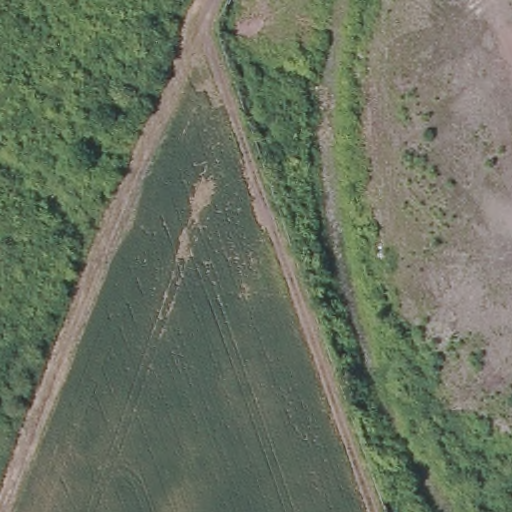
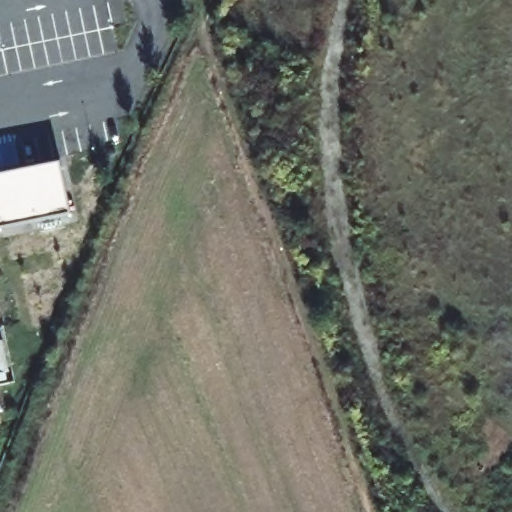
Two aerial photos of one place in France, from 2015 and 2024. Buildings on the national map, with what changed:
new [(60,159),(69,211),(0,225),(0,172),(60,159)]
new [(6,452),(0,453),(0,414),(6,452)]

